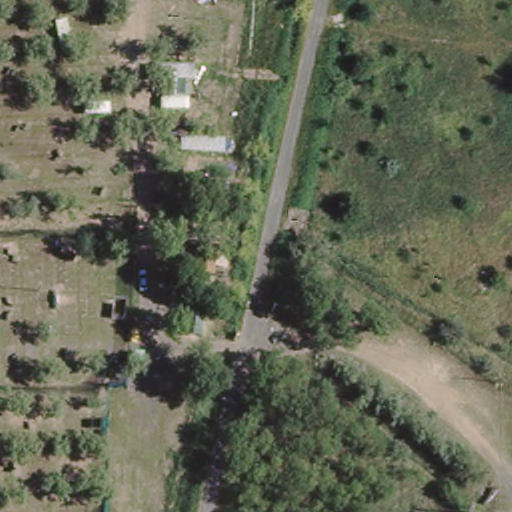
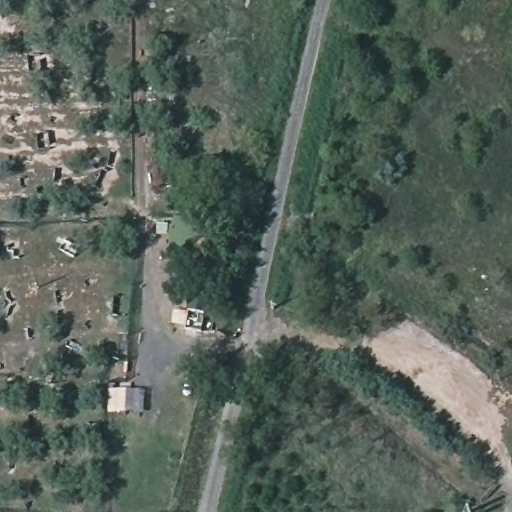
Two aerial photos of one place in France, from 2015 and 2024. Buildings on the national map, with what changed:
unchanged [(205,326),(188,324),(189,309),(206,311),(205,326)]

